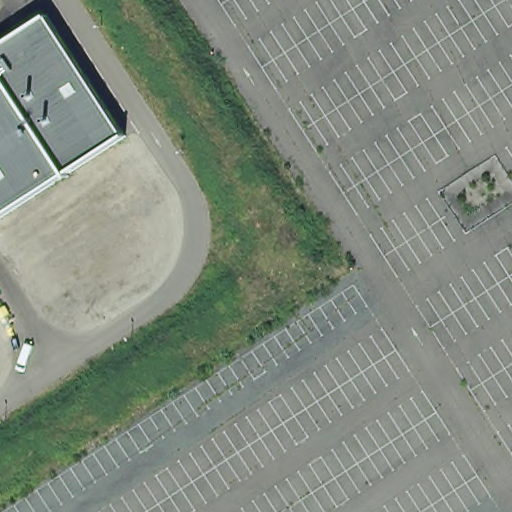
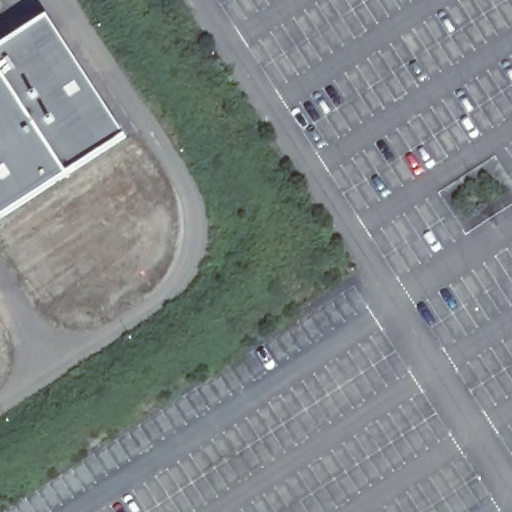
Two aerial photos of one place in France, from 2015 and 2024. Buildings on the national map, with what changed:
unchanged [(49,14),(126,139),(0,220),(0,48),(49,14)]

